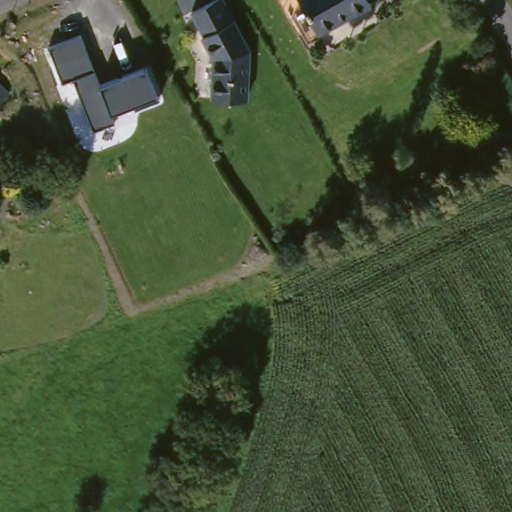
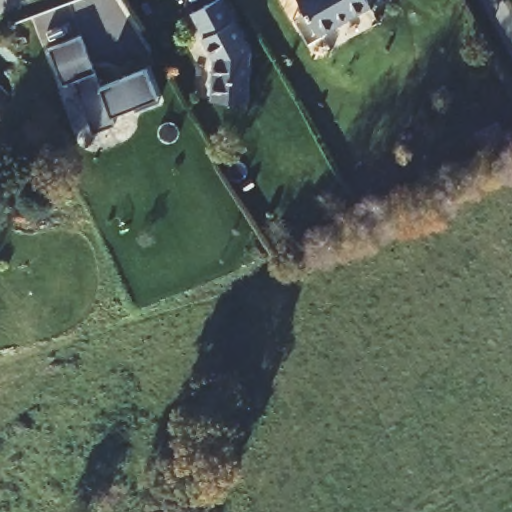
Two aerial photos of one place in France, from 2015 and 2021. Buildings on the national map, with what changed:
unchanged [(223,0),(250,54),(245,104),(210,101),(214,60),(203,39),(205,38),(192,14),(220,0),(223,0)]
unchanged [(301,0),(366,0),(370,5),(319,34),(301,0)]
unchanged [(137,104),(111,115),(113,124),(92,131),(72,79),(61,83),(48,46),(82,34),(94,69),(101,87),(149,68),(159,95),(137,104)]
unchanged [(0,100),(0,85),(7,94),(0,100)]

